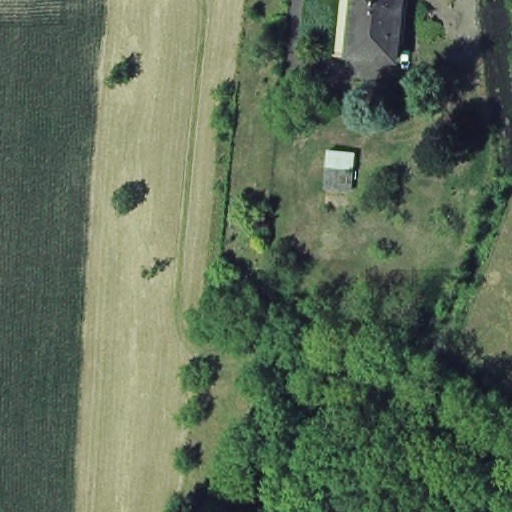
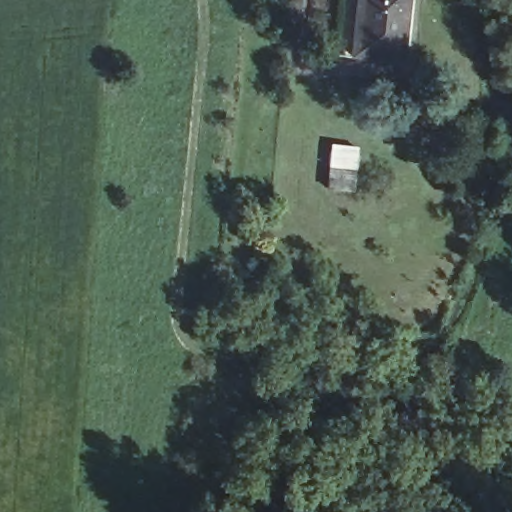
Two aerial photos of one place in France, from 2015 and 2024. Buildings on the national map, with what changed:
unchanged [(340,0),(354,0),(349,54),(334,52),(340,0)]
unchanged [(401,0),(396,60),(349,54),(354,0),(401,0)]

